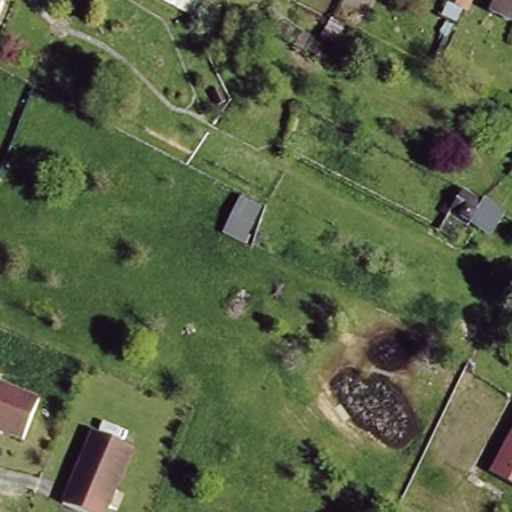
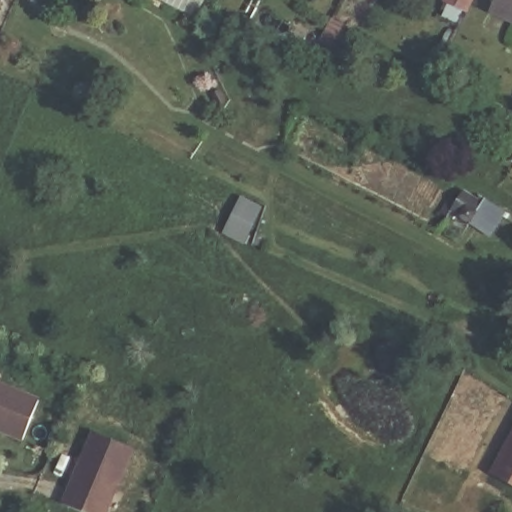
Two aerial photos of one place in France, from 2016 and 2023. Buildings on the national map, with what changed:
unchanged [(0,3),(0,0),(2,0),(0,3)]
unchanged [(461,28),(440,16),(447,3),(438,1),(438,0),(473,0),(461,28)]
unchanged [(494,0),(512,0),(512,22),(489,10),(494,0)]
unchanged [(477,226),(452,210),(463,190),(494,211),(502,215),(498,221),(490,234),(477,226)]
unchanged [(36,402),(19,442),(0,435),(0,388),(36,402)]
unchanged [(103,512),(67,512),(59,508),(89,433),(131,450),(103,512)]
unchanged [(512,436),(512,485),(491,473),(512,436)]

